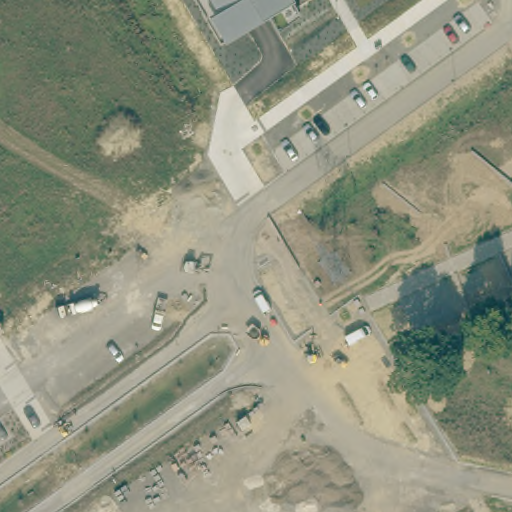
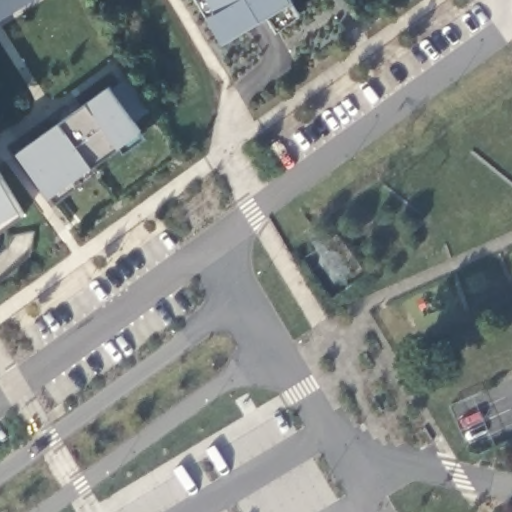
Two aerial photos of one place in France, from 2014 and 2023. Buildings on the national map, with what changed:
new [(0,22),(0,0),(35,0),(0,22)]
unchanged [(211,14),(219,10),(213,0),(296,0),(292,2),(301,15),(278,29),(268,15),(225,41),(211,14)]
new [(51,197),(18,152),(110,87),(141,131),(51,197)]
new [(25,215),(0,233),(0,172),(22,209),(25,215)]

